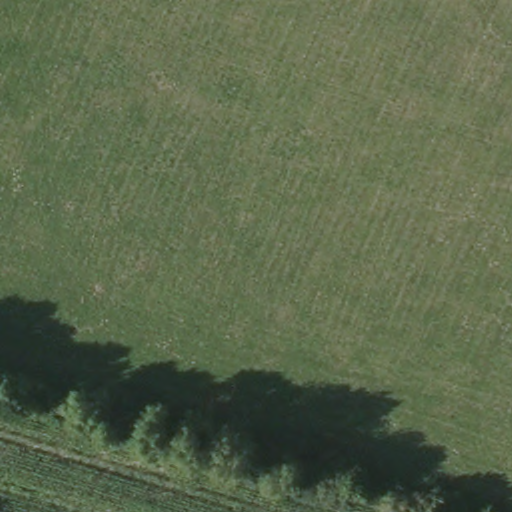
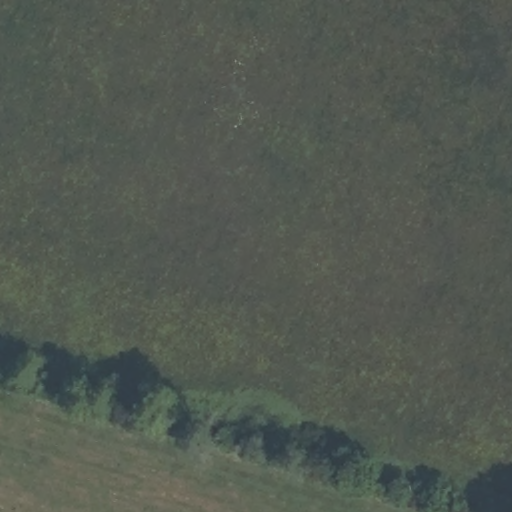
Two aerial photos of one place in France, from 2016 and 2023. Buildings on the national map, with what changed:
[]

